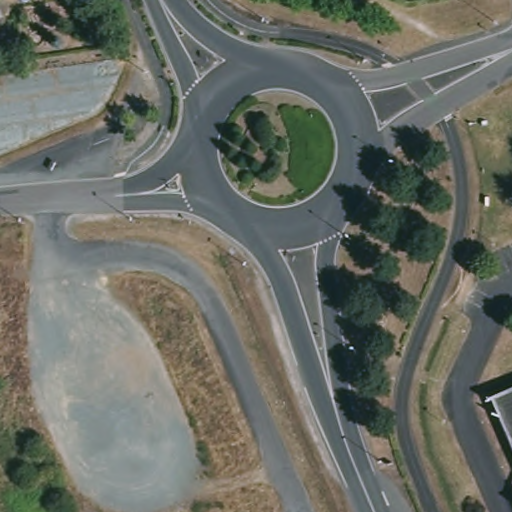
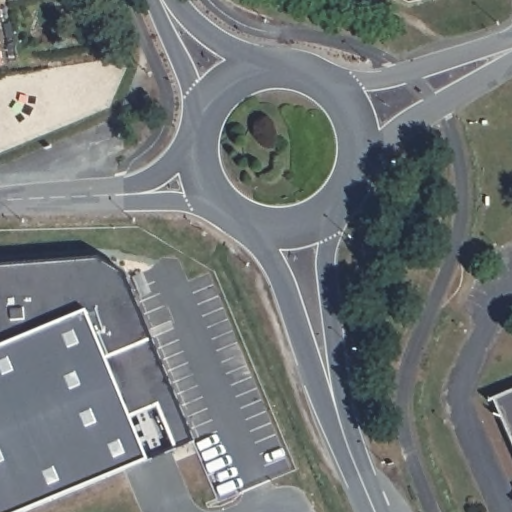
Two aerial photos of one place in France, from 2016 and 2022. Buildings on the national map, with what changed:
unchanged [(0,48),(1,55),(3,66),(0,67),(0,48)]
new [(147,460),(21,512),(0,512),(0,267),(98,259),(124,273),(193,441),(147,460)]
unchanged [(512,388),(512,462),(485,400),(512,388)]

